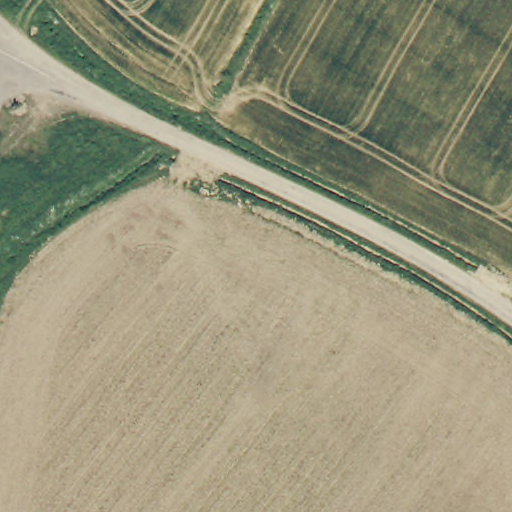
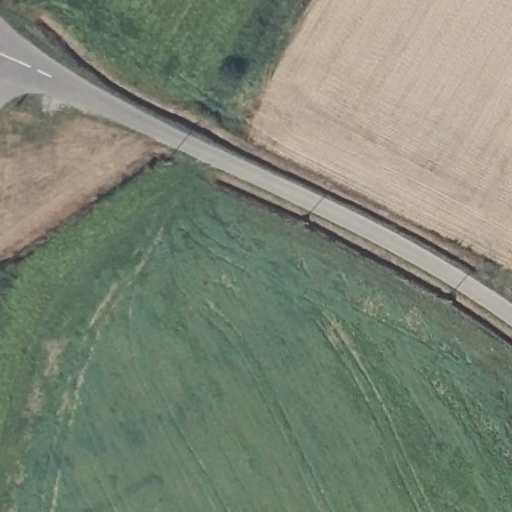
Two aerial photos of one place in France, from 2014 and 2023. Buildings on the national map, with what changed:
[]

